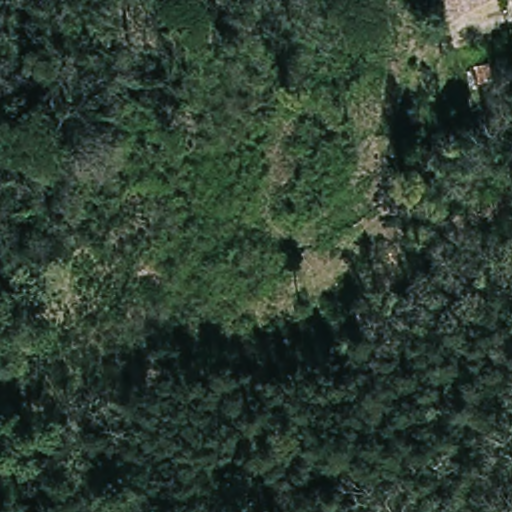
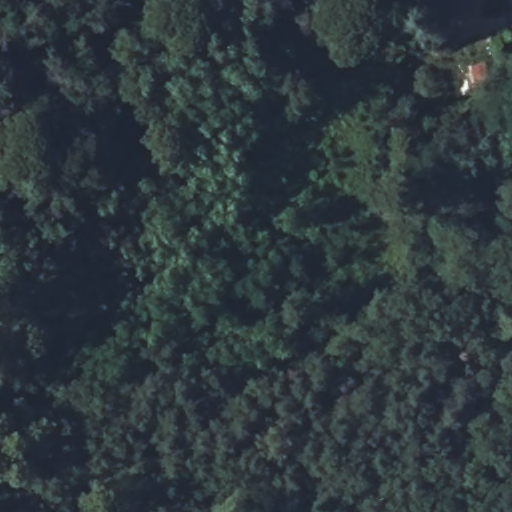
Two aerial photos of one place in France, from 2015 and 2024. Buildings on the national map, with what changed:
unchanged [(443,8),(438,0),(457,0),(443,8)]

